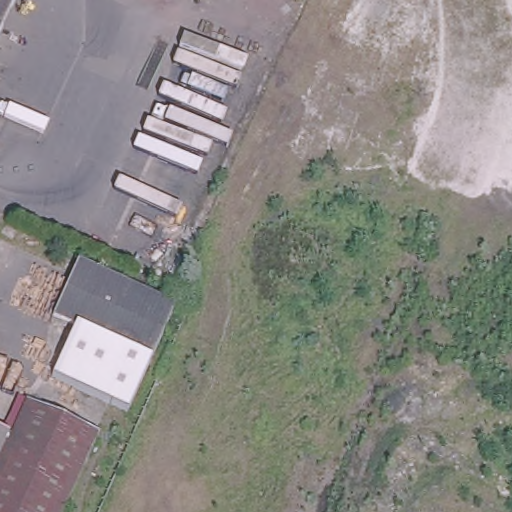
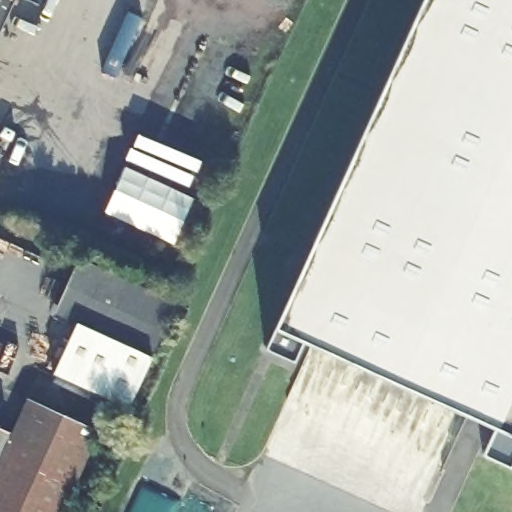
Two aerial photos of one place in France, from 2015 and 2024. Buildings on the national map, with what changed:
unchanged [(0,31),(0,0),(14,0),(0,31)]
new [(512,444),(264,330),(401,0),(512,0),(512,444)]
new [(126,167),(193,196),(174,242),(107,212),(126,167)]
unchanged [(78,254),(178,302),(149,358),(54,313),(78,254)]
new [(78,325),(149,358),(125,406),(55,372),(78,325)]
unchanged [(26,401),(95,432),(61,512),(0,512),(0,429),(11,434),(26,401)]

